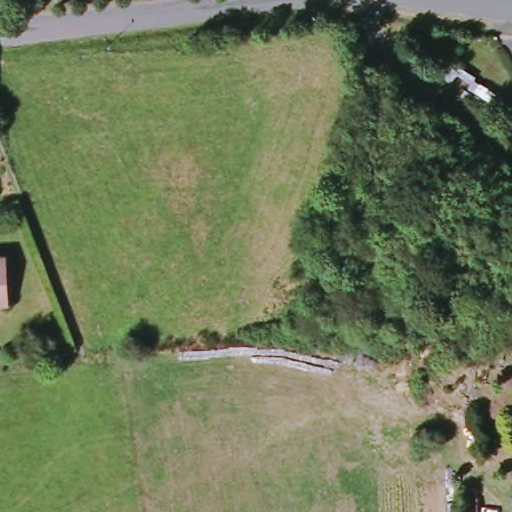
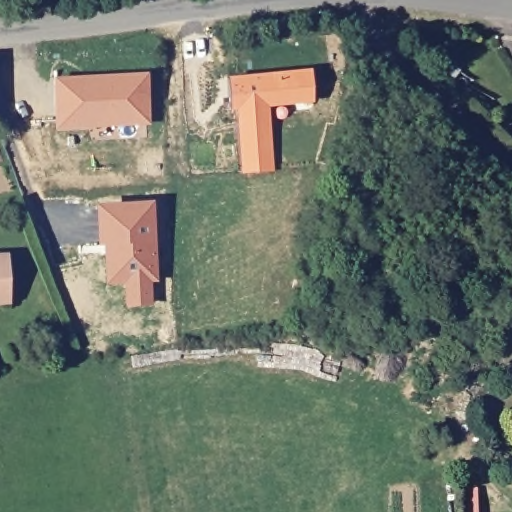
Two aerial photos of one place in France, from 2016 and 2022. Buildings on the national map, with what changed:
new [(309,70),(312,102),(268,106),(274,171),(240,173),(235,110),(229,111),(226,77),(309,70)]
new [(54,88),(54,84),(95,82),(144,79),(145,125),(92,127),(55,129),(55,123),(54,88)]
new [(125,305),(122,281),(104,283),(102,255),(106,254),(105,246),(100,246),(97,210),(129,209),(129,205),(149,205),(152,278),(145,280),(147,303),(125,305)]
unchanged [(7,256),(11,303),(0,304),(0,256),(7,256)]
unchanged [(480,512),(464,512),(465,490),(480,488),(480,512)]

